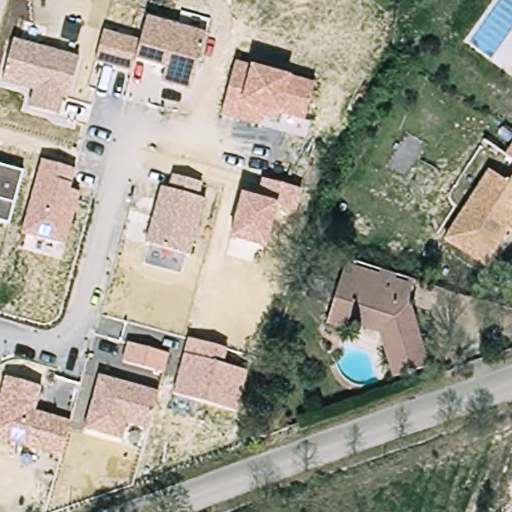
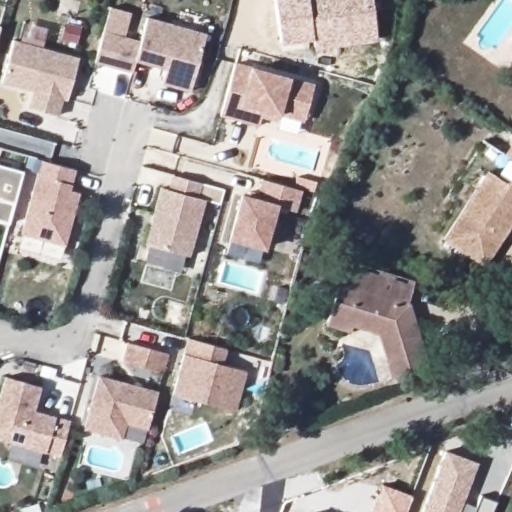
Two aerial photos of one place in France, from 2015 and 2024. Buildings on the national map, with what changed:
new [(315,51),(314,41),(281,45),(275,0),(372,0),(377,42),(315,51)]
unchanged [(142,41),(149,18),(205,35),(191,89),(165,84),(169,69),(135,60),(130,73),(96,62),(104,32),(142,41)]
unchanged [(5,83),(14,40),(78,58),(68,102),(61,101),(59,115),(30,107),(33,91),(5,83)]
unchanged [(251,67),(288,77),(313,83),(305,121),(281,117),(279,121),(260,117),(258,125),(221,115),(235,63),(251,67)]
unchanged [(512,158),(512,162),(510,161),(512,158)]
unchanged [(72,184),(70,190),(80,192),(65,243),(21,233),(43,160),(75,170),(72,184)]
unchanged [(22,171),(9,224),(0,221),(0,166),(22,171)]
unchanged [(447,241),(494,175),(512,189),(512,188),(512,230),(486,267),(447,241)]
unchanged [(190,256),(148,244),(161,188),(168,189),(172,176),(201,183),(198,198),(204,199),(190,256)]
unchanged [(268,249),(230,238),(242,195),(259,198),(263,181),(303,190),(298,211),(276,209),(268,249)]
unchanged [(411,279),(411,280),(405,301),(411,321),(427,373),(393,383),(392,378),(381,336),(331,320),(350,262),(411,279)]
unchanged [(227,348),(224,365),(244,372),(236,412),(176,391),(184,355),(188,340),(227,348)]
unchanged [(168,353),(163,370),(124,361),(128,343),(168,353)]
unchanged [(157,392),(146,428),(127,424),(122,441),(84,429),(99,376),(157,392)]
unchanged [(42,387),(37,410),(71,419),(60,455),(0,441),(0,394),(4,378),(42,387)]
new [(464,502),(477,507),(482,495),(497,501),(493,512),(422,512),(446,450),(479,463),(464,502)]
new [(383,483),(413,495),(407,512),(371,512),(383,483)]

